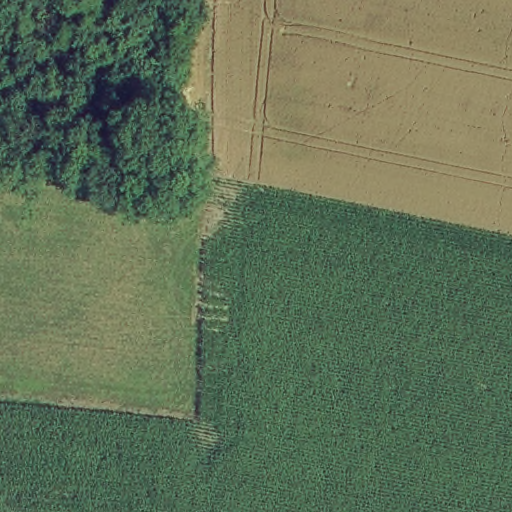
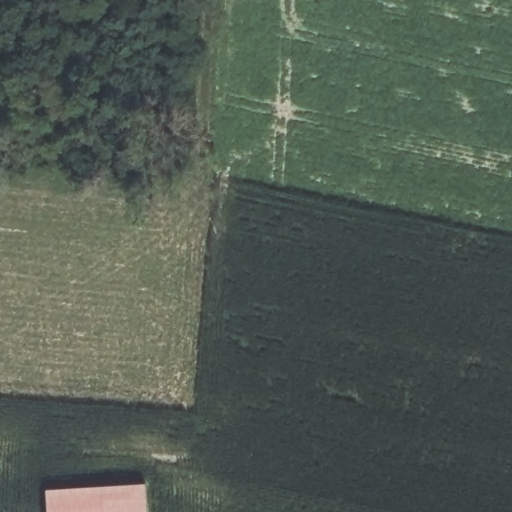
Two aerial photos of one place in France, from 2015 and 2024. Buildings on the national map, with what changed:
new [(148,512),(47,512),(45,489),(145,482),(148,512)]

